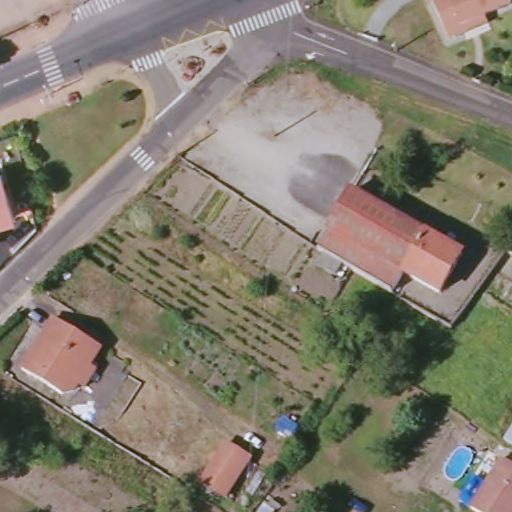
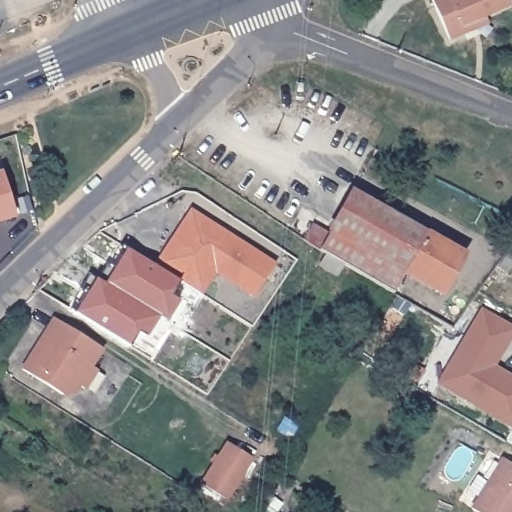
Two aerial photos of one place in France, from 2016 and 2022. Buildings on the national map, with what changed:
unchanged [(467,34),(463,35),(447,42),(438,22),(428,0),(506,0),(509,6),(482,18),(485,26),(467,34)]
new [(19,217),(0,221),(0,165),(2,165),(19,217)]
unchanged [(323,247),(355,191),(464,254),(444,291),(407,272),(397,292),(352,266),(323,247)]
new [(71,308),(84,288),(80,286),(90,274),(98,280),(108,265),(110,266),(122,246),(152,265),(190,207),(275,262),(252,297),(214,273),(200,295),(177,281),(168,294),(179,302),(166,322),(159,318),(147,337),(136,331),(127,345),(71,308)]
new [(505,441),(512,428),(437,384),(482,306),(512,324),(512,337),(496,365),(512,375),(512,444),(505,441)]
unchanged [(99,350),(92,366),(97,368),(85,387),(77,386),(75,392),(62,392),(23,371),(29,357),(35,360),(40,348),(35,347),(49,322),(99,350)]
unchanged [(252,462),(230,499),(205,486),(229,448),(252,462)]
unchanged [(471,512),(466,509),(496,459),(512,469),(512,512),(471,512)]

